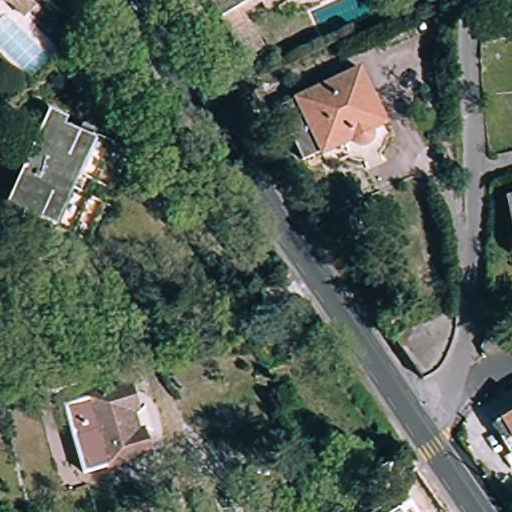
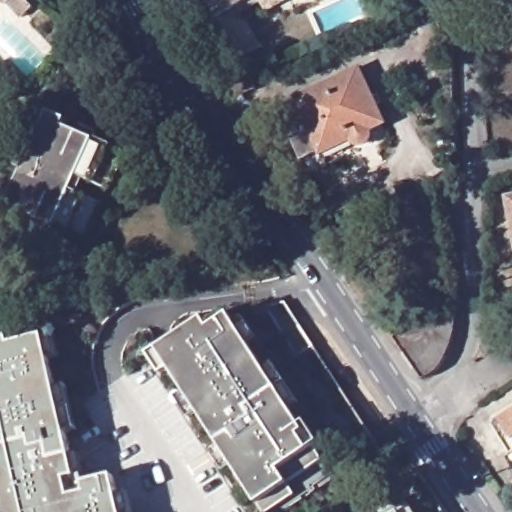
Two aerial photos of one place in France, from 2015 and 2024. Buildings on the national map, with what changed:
unchanged [(18,0),(33,0),(25,7),(18,0)]
unchanged [(223,30),(204,0),(253,0),(238,10),(243,17),(257,39),(237,51),(223,30)]
unchanged [(257,0),(277,0),(262,8),(257,0)]
unchanged [(360,67),(386,124),(371,131),(372,135),(371,137),(370,142),(368,144),(364,145),(361,146),(356,145),(350,140),(320,156),(318,154),(301,161),(276,107),(360,67)]
unchanged [(248,80),(251,79),(256,90),(237,99),(232,87),(248,80)]
unchanged [(81,237),(25,212),(21,219),(3,211),(23,169),(11,164),(18,149),(29,154),(48,111),(66,120),(63,126),(120,151),(128,155),(111,190),(95,184),(78,176),(73,190),(89,197),(105,205),(89,240),(81,237)]
unchanged [(512,197),(512,220),(508,198),(512,197)]
new [(287,301),(315,345),(299,355),(268,305),(287,301)]
unchanged [(393,337),(456,309),(455,319),(455,327),(454,331),(452,339),(450,346),(447,353),(444,360),(442,364),(439,367),(436,370),(434,372),(432,374),(429,375),(423,380),(393,337)]
new [(321,450),(331,468),(312,480),(315,484),(271,512),(268,512),(266,510),(175,366),(167,371),(154,351),(162,346),(208,317),(213,326),(233,313),(268,368),(277,362),(301,400),(293,406),(299,416),(304,412),(326,447),(321,450)]
unchanged [(485,333),(502,345),(485,355),(480,347),(485,333)]
new [(0,500),(0,336),(5,335),(8,345),(42,336),(75,476),(66,478),(70,496),(86,493),(84,482),(113,476),(121,512),(3,512),(0,500)]
demolished [(78,365),(83,381),(58,389),(53,373),(78,365)]
demolished [(130,386),(136,410),(133,411),(139,430),(142,430),(149,453),(84,472),(65,405),(130,386)]
unchanged [(512,409),(512,444),(497,418),(512,409)]
demolished [(211,495),(215,512),(197,512),(194,500),(211,495)]
unchanged [(394,498),(400,507),(410,501),(417,512),(372,512),(394,498)]

